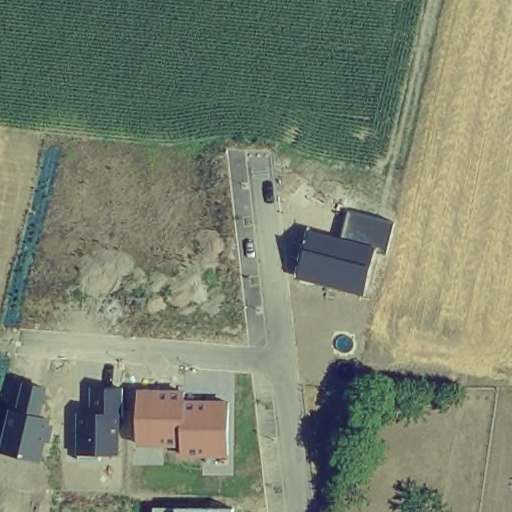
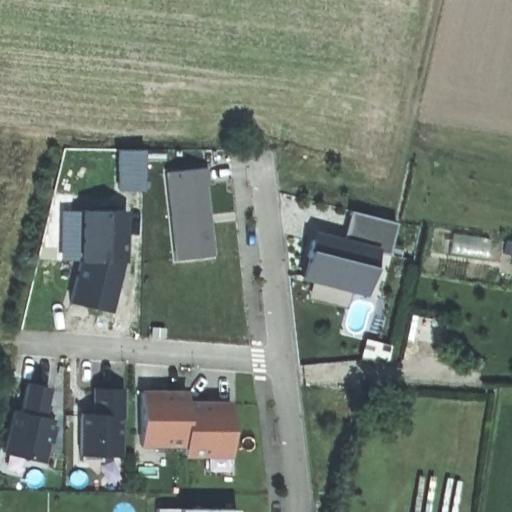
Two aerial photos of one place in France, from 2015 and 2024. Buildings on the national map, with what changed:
new [(147,194),(118,192),(118,153),(147,153),(147,194)]
new [(207,165),(217,256),(172,261),(162,170),(207,165)]
unchanged [(389,255),(378,252),(367,295),(295,277),(307,228),(343,237),(349,211),(398,224),(389,255)]
new [(127,265),(114,314),(68,305),(81,262),(84,216),(130,216),(127,265)]
unchanged [(42,415),(54,418),(52,425),(56,426),(52,445),(50,444),(45,462),(2,452),(12,410),(17,410),(24,381),(50,387),(42,415)]
unchanged [(122,420),(120,420),(120,456),(78,456),(78,410),(91,408),(92,385),(123,386),(122,420)]
unchanged [(229,457),(181,456),(182,446),(139,446),(139,391),(188,391),(187,400),(230,401),(229,457)]
unchanged [(156,512),(156,507),(235,508),(235,512),(156,512)]

